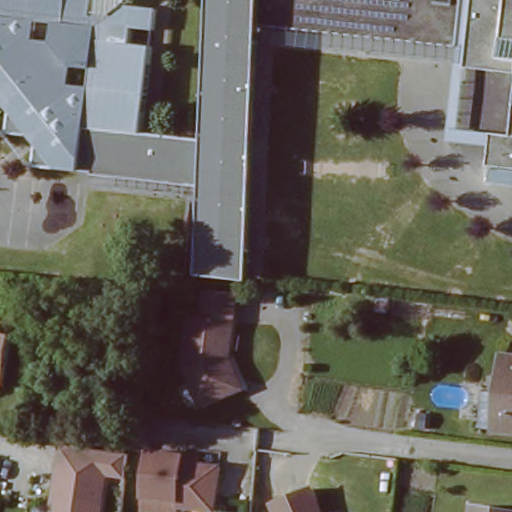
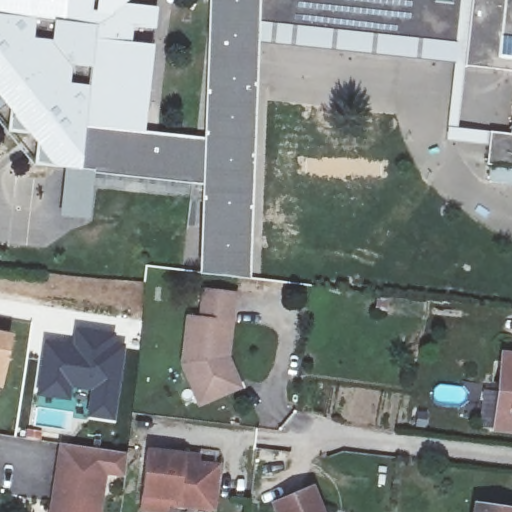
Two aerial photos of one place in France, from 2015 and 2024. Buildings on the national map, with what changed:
unchanged [(89,0),(88,13),(102,14),(108,15),(110,4),(153,9),(150,31),(129,29),(127,45),(149,47),(138,133),(88,126),(81,126),(75,172),(30,166),(34,136),(4,132),(8,101),(0,93),(0,0),(89,0)]
unchanged [(246,276),(200,271),(194,179),(77,170),(85,130),(141,136),(199,141),(205,0),(267,0),(266,22),(246,276)]
unchanged [(487,131),(459,120),(463,68),(457,41),(266,22),(267,0),(512,0),(512,167),(485,166),(487,131)]
unchanged [(8,101),(0,108),(0,93),(8,101)]
unchanged [(199,402),(184,364),(189,314),(198,313),(199,285),(234,290),(229,350),(245,385),(199,402)]
new [(45,333),(72,337),(75,328),(127,337),(116,423),(84,418),(85,394),(72,392),(71,402),(35,396),(45,333)]
unchanged [(6,332),(4,348),(0,378),(0,331),(6,332)]
unchanged [(488,388),(500,389),(504,354),(512,354),(512,429),(484,427),(488,388)]
unchanged [(58,442),(126,448),(122,478),(107,475),(102,512),(50,512),(58,442)]
unchanged [(210,510),(175,507),(173,512),(161,512),(138,509),(146,443),(198,447),(199,455),(220,458),(210,510)]
unchanged [(274,497),(314,483),(323,512),(278,512),(274,497)]
unchanged [(469,505),(512,510),(512,512),(468,512),(469,505)]

